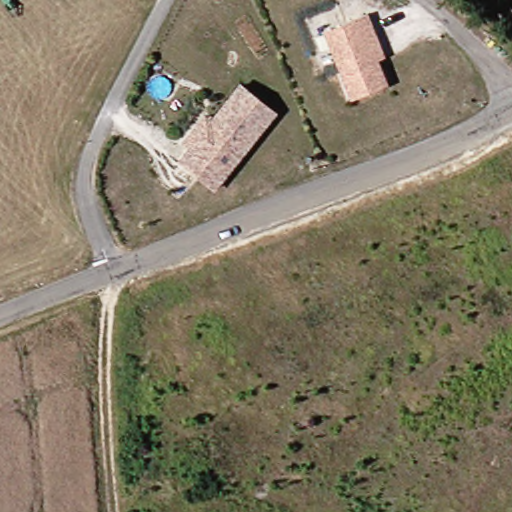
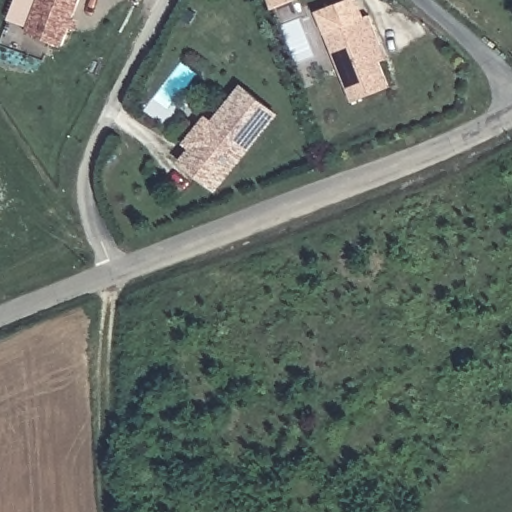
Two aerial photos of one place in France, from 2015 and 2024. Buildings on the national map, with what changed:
new [(36,0),(77,0),(61,46),(25,34),(36,0)]
unchanged [(382,37),(378,48),(392,82),(354,97),(326,28),(371,10),(382,37)]
unchanged [(279,114),(215,186),(181,157),(193,143),(187,138),(209,114),(216,119),(246,84),(279,114)]

